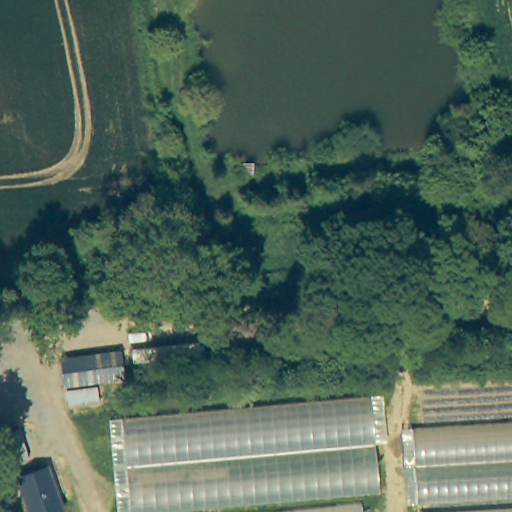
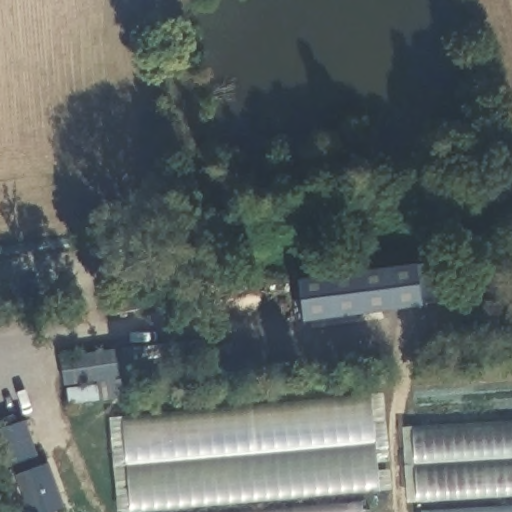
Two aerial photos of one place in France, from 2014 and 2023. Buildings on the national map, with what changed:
new [(437,264),(440,302),(421,305),(421,309),(304,323),(298,278),(437,264)]
unchanged [(119,350),(123,380),(64,387),(60,359),(119,350)]
unchanged [(370,397),(378,492),(359,494),(361,512),(130,512),(122,418),(370,397)]
unchanged [(512,512),(421,512),(420,503),(415,503),(410,428),(512,422),(512,512)]
unchanged [(47,465),(64,510),(59,512),(29,512),(16,476),(47,465)]

